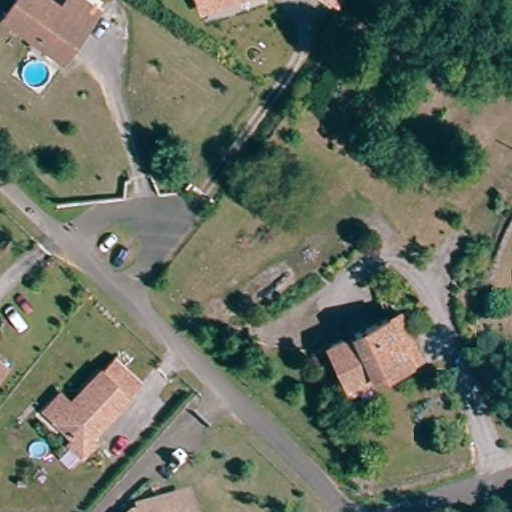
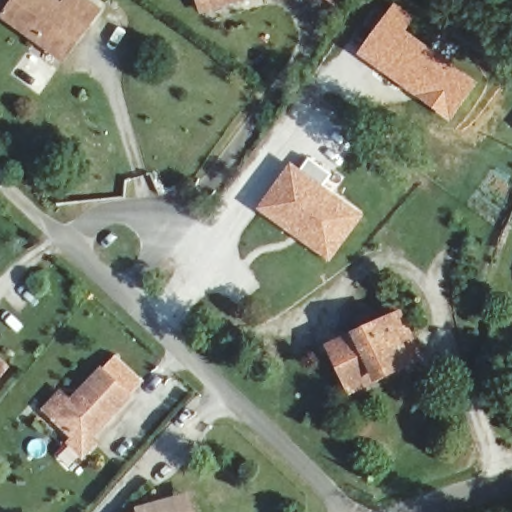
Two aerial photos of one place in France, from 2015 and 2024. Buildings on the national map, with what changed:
unchanged [(11,22),(27,0),(56,0),(68,9),(75,0),(84,0),(106,16),(90,36),(68,61),(60,56),(11,22)]
unchanged [(185,0),(231,0),(192,16),(185,0)]
unchanged [(322,0),(330,0),(327,4),(322,0)]
new [(393,2),(416,17),(407,30),(478,81),(449,122),(356,54),(393,2)]
new [(301,173),(309,159),(333,174),(323,189),(348,206),(322,245),(264,206),(293,166),(301,173)]
unchanged [(427,359),(408,368),(384,323),(403,314),(427,359)]
unchanged [(344,386),(328,355),(384,323),(408,368),(373,385),(351,396),(349,397),(344,386)]
unchanged [(75,409),(114,360),(143,382),(89,445),(96,451),(82,461),(68,439),(48,420),(63,401),(75,409)]
unchanged [(0,390),(0,362),(14,372),(0,390)]
unchanged [(129,507),(154,501),(179,494),(184,512),(130,512),(129,507)]

